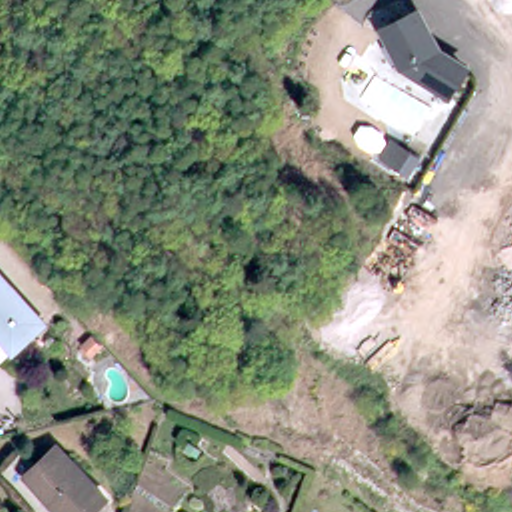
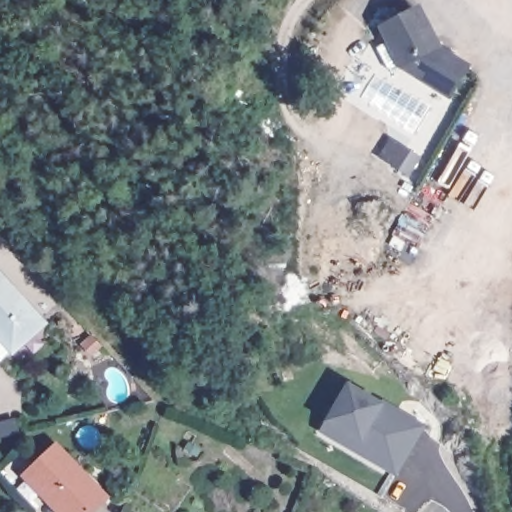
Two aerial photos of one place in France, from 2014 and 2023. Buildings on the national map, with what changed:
unchanged [(417,15),(434,52),(464,72),(446,99),(395,68),(382,35),(417,15)]
unchanged [(48,324),(0,363),(0,272),(48,324)]
new [(397,477),(320,435),(327,426),(350,383),(385,404),(427,426),(397,477)]
unchanged [(51,494),(28,470),(59,442),(111,497),(94,512),(46,512),(39,505),(51,494)]

